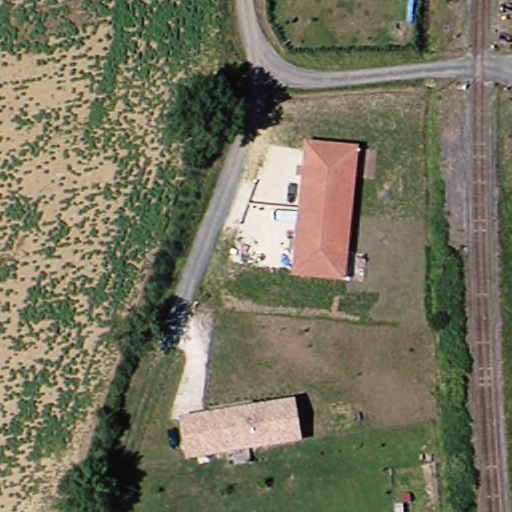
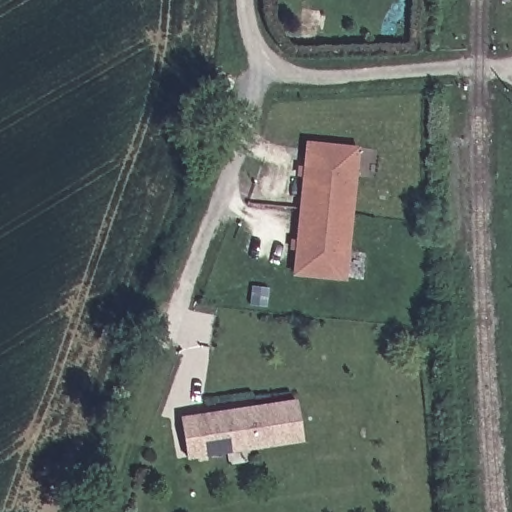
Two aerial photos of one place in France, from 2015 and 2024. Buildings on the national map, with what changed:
unchanged [(346,280),(293,273),(305,140),(358,146),(346,280)]
unchanged [(207,454),(195,456),(190,418),(253,408),(263,406),(305,400),(310,438),(306,439),(257,446),(235,450),(207,454)]

